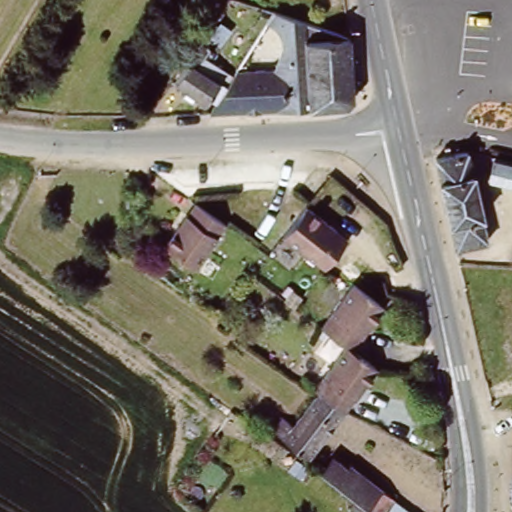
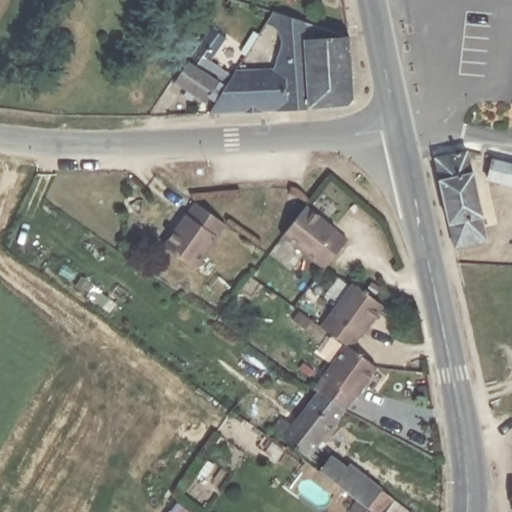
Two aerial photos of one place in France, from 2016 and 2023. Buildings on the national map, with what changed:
unchanged [(355,97),(350,104),(209,112),(234,74),(280,71),(281,62),(305,60),(304,33),(295,30),(292,32),(265,24),(272,12),(349,34),(355,97)]
unchanged [(174,82),(202,42),(217,53),(204,71),(220,82),(205,105),(174,82)]
unchanged [(486,247),(457,252),(439,161),(467,157),(486,247)]
unchanged [(487,157),(489,157),(512,162),(512,184),(485,178),(487,157)]
unchanged [(226,224),(194,267),(164,245),(195,202),(226,224)]
unchanged [(310,252),(287,235),(309,205),(333,223),(351,237),(329,267),(310,252)]
unchanged [(337,305),(355,282),(387,306),(354,346),(379,366),(346,408),(317,391),(365,325),(337,305)]
unchanged [(317,391),(310,388),(347,341),(323,322),(337,305),(365,325),(317,391)]
unchanged [(346,408),(309,456),(270,429),(281,416),(292,422),(317,391),(346,408)]
unchanged [(394,510),(397,512),(376,512),(356,497),(325,473),(337,457),(350,468),(355,462),(402,500),(394,510)]
unchanged [(376,512),(348,512),(341,507),(346,500),(352,503),(356,497),(376,512)]

